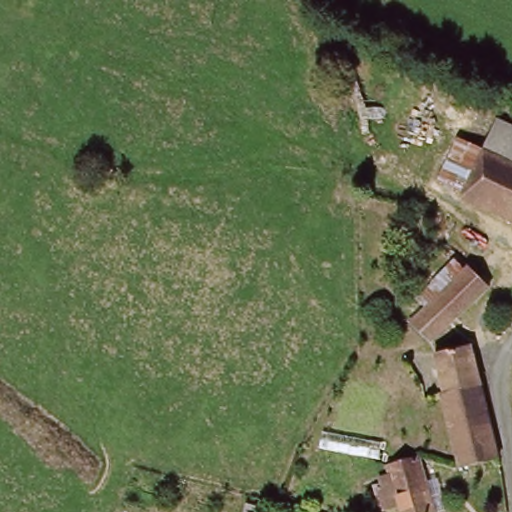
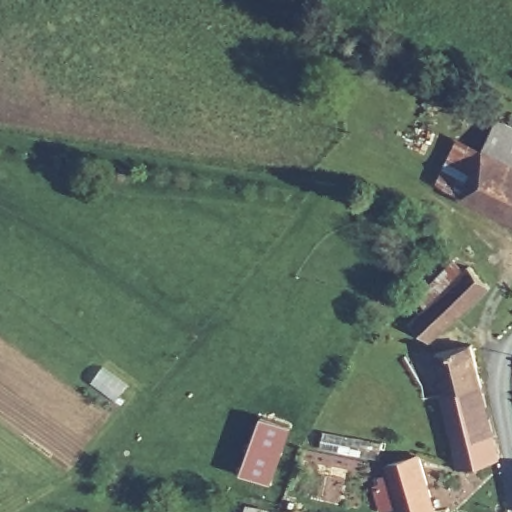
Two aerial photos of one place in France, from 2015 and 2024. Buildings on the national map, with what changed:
unchanged [(512,128),(512,146),(487,130),(493,119),(512,128)]
unchanged [(478,150),(487,130),(512,146),(512,224),(457,195),(478,150)]
unchanged [(451,139),(478,150),(457,195),(431,184),(451,139)]
unchanged [(423,337),(404,318),(463,263),(483,282),(423,337)]
unchanged [(461,346),(465,350),(468,359),(475,385),(430,396),(427,397),(417,400),(414,396),(413,390),(417,387),(429,384),(433,379),(427,355),(461,346)]
unchanged [(452,465),(430,396),(475,385),(495,460),(452,465)]
new [(272,483),(242,472),(260,417),(293,428),(272,483)]
unchanged [(426,512),(395,512),(381,468),(411,461),(426,512)]
unchanged [(256,512),(254,512),(255,511),(256,512)]

